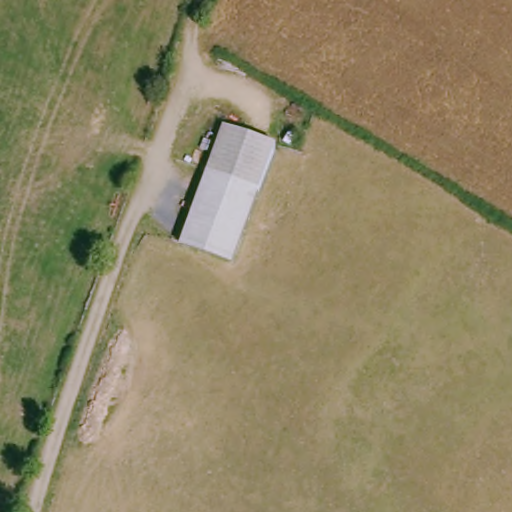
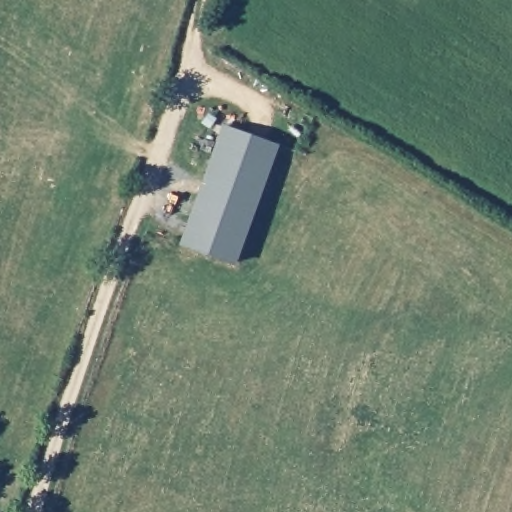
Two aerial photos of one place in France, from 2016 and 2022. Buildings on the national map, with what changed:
unchanged [(278,149),(231,264),(184,245),(228,130),(278,149)]

